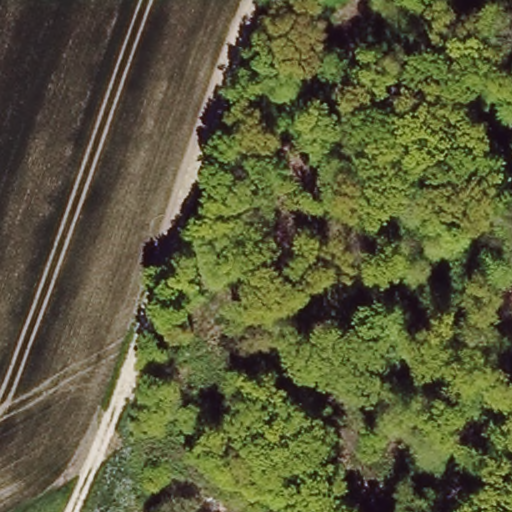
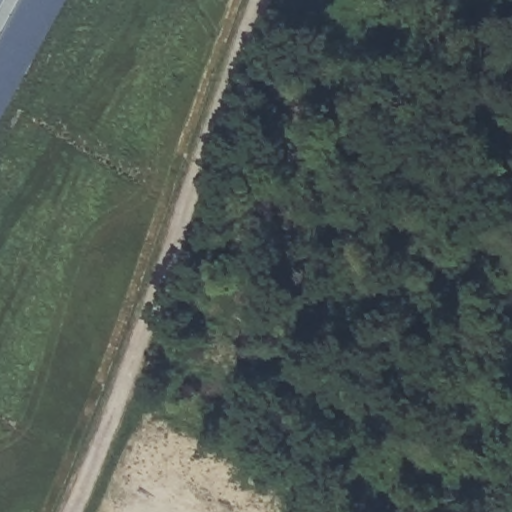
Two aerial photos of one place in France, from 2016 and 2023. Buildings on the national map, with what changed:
new [(0,0),(66,0),(0,120),(0,0)]

